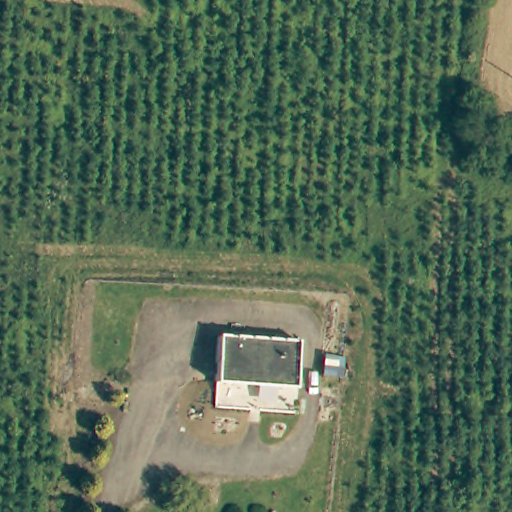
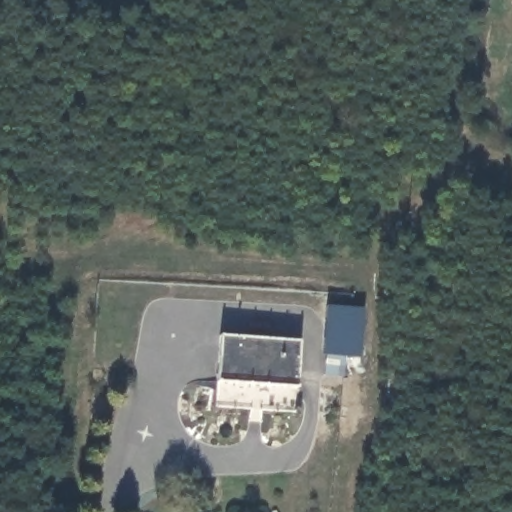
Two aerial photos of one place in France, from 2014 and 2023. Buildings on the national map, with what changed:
new [(364,310),(360,357),(322,355),(325,306),(364,310)]
unchanged [(219,337),(296,343),(293,387),(215,381),(219,337)]

